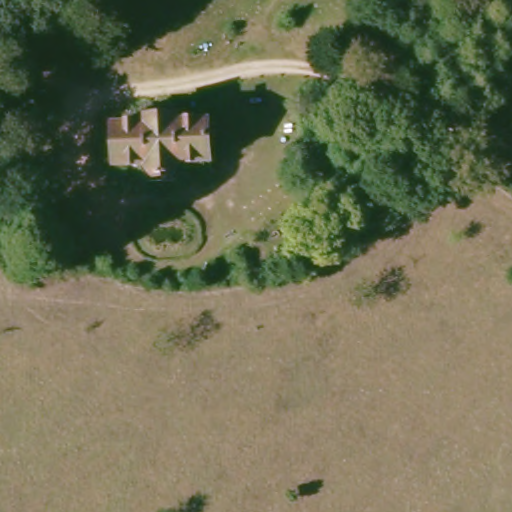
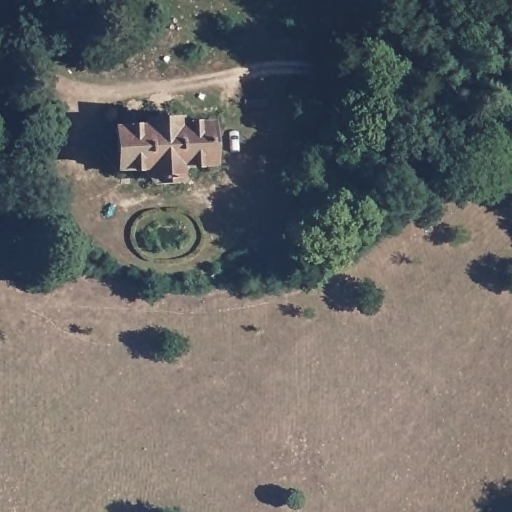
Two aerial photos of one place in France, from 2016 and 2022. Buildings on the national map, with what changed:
unchanged [(512,82),(510,84),(500,66),(509,60),(512,65),(512,82)]
unchanged [(113,167),(111,125),(138,124),(140,117),(153,116),(151,101),(165,101),(165,116),(177,116),(177,122),(205,121),(205,134),(212,135),(213,153),(206,154),(206,163),(180,164),(190,175),(182,181),(173,174),(151,174),(140,184),(133,175),(142,166),(113,167)]

